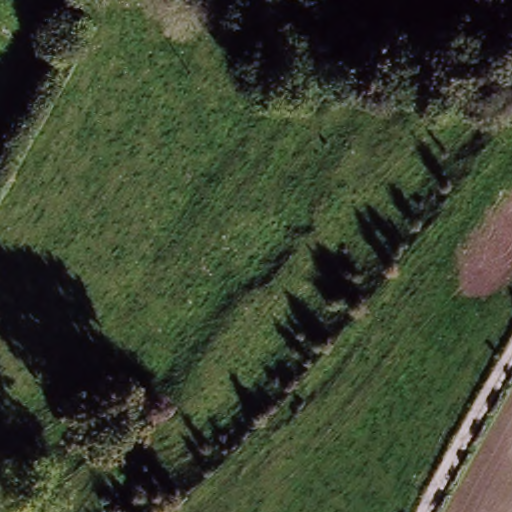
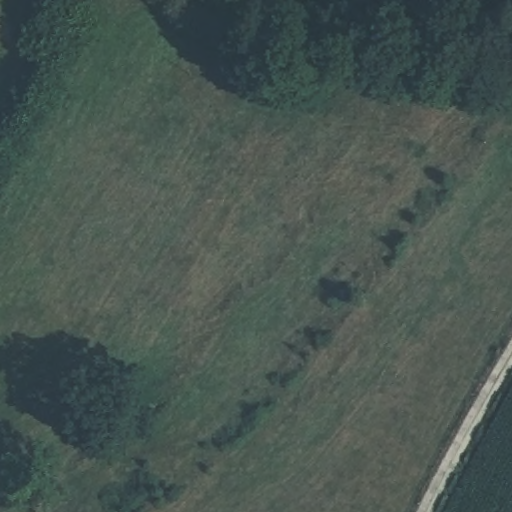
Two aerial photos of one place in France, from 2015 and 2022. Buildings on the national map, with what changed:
[]

